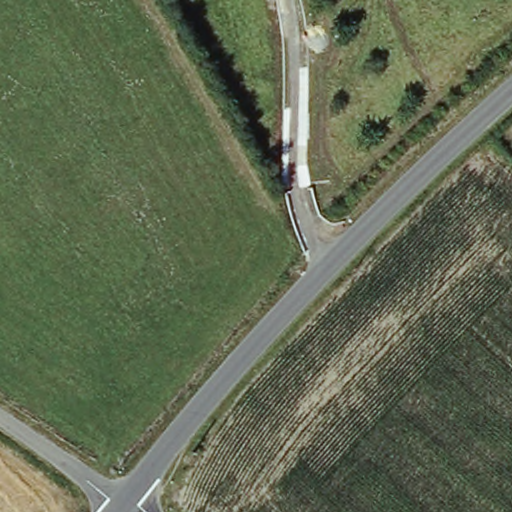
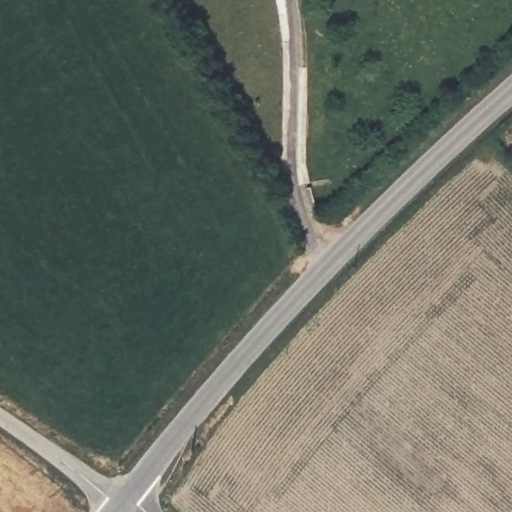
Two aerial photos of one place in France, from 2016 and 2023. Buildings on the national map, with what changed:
unchanged [(193,460),(188,467),(181,462),(187,455),(193,460)]

